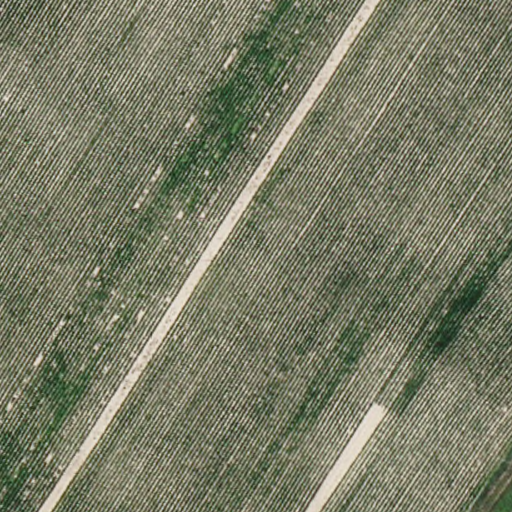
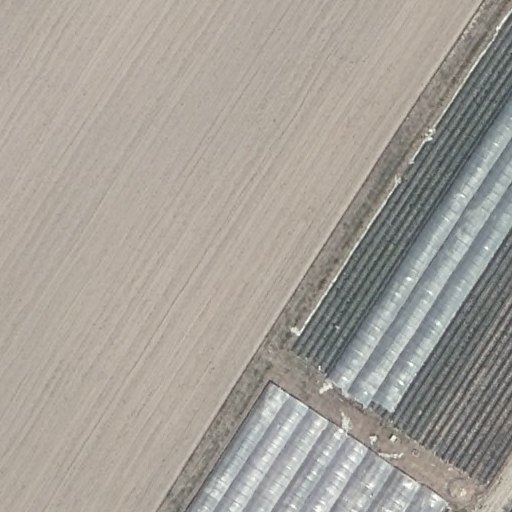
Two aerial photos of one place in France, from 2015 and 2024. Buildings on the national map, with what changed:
new [(392,413),(372,399),(366,407),(327,378),(512,97),(512,229),(392,413)]
new [(186,512),(269,382),(447,502),(440,512),(186,512)]

